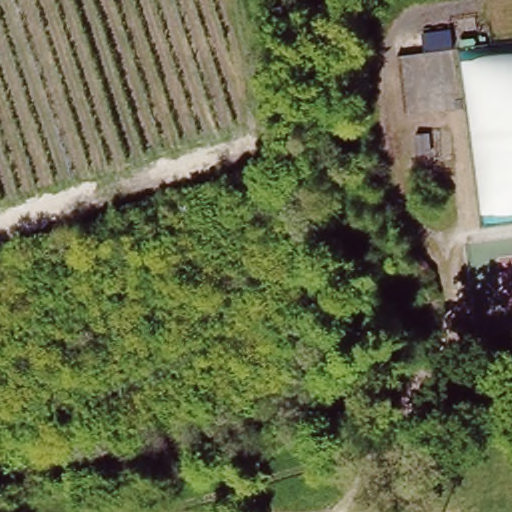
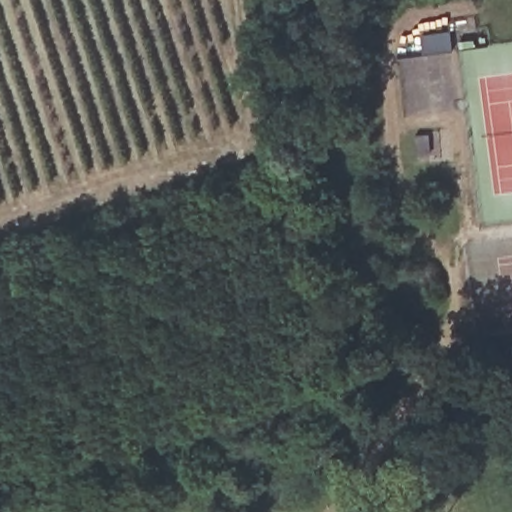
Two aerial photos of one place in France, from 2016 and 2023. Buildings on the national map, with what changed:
unchanged [(461,64),(512,58),(512,219),(484,223),(461,64)]
unchanged [(430,136),(431,155),(418,157),(417,137),(430,136)]

